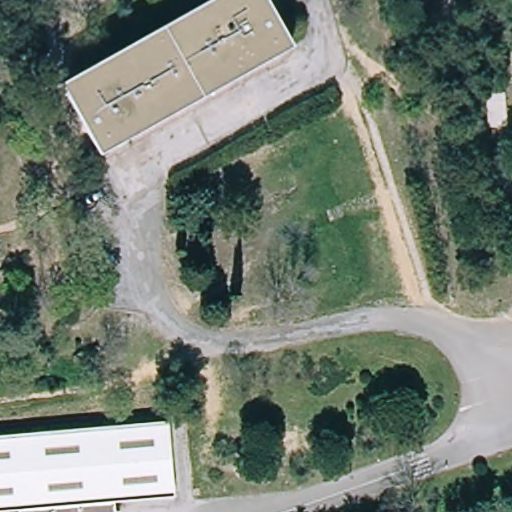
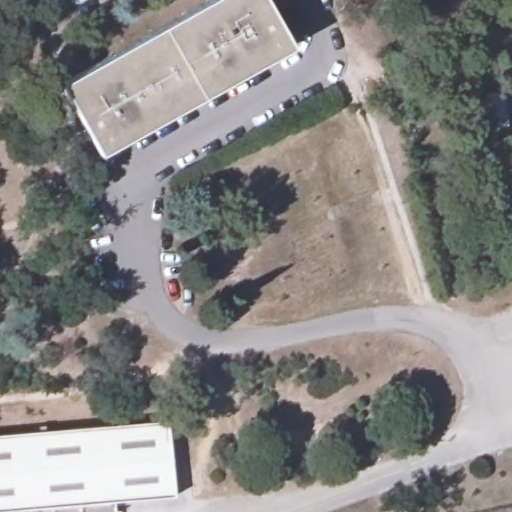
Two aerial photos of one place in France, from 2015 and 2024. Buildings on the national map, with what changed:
unchanged [(212,0),(268,0),(293,46),(99,149),(63,79),(212,0)]
unchanged [(489,126),(486,92),(505,91),(508,125),(489,126)]
unchanged [(171,495),(111,501),(113,512),(15,512),(14,510),(0,511),(0,436),(164,420),(171,495)]

